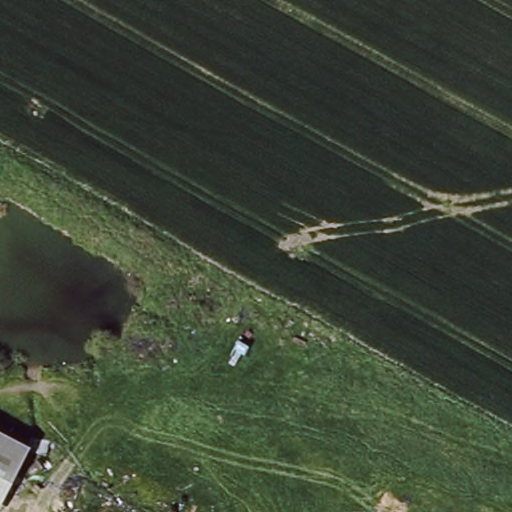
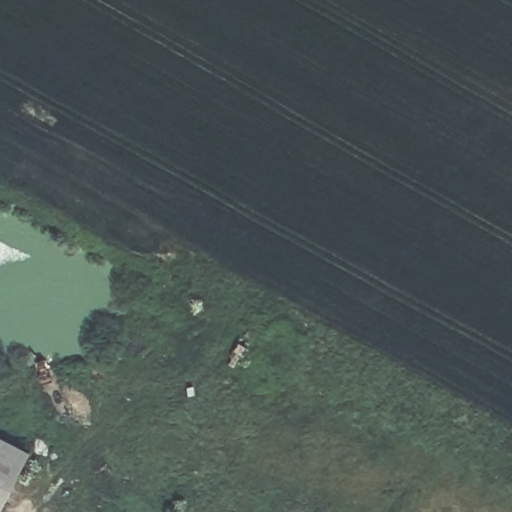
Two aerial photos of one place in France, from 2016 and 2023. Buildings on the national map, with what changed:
unchanged [(30,444),(0,505),(0,429),(30,444)]

